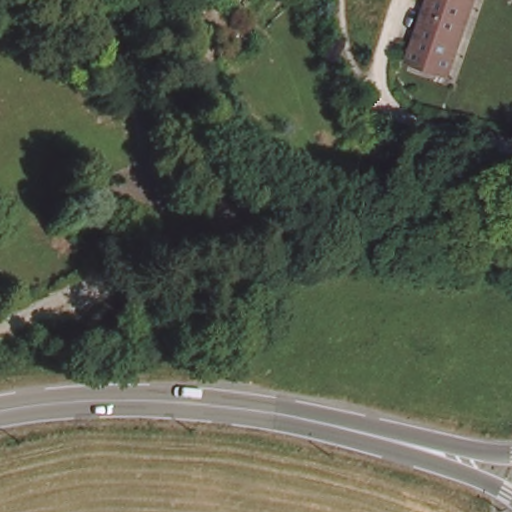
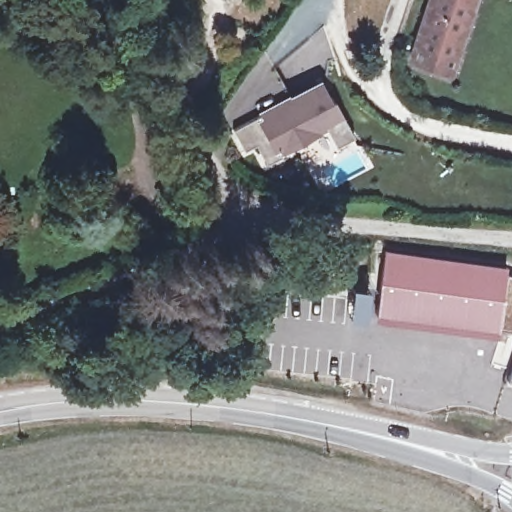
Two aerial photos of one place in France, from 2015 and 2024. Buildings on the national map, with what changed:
unchanged [(415,42),(429,0),(466,0),(470,7),(462,28),(453,34),(457,43),(450,66),(412,54),(415,42)]
new [(328,129),(319,132),(320,135),(285,152),(283,149),(279,150),(282,157),(267,164),(256,144),(245,149),(235,131),(258,117),(261,116),(259,111),(290,96),(291,98),(322,81),(342,116),(354,137),(335,146),(328,129)]
new [(507,268),(506,275),(512,276),(512,330),(497,328),(377,313),(385,250),(507,268)]
new [(509,378),(512,369),(512,379),(509,378)]

